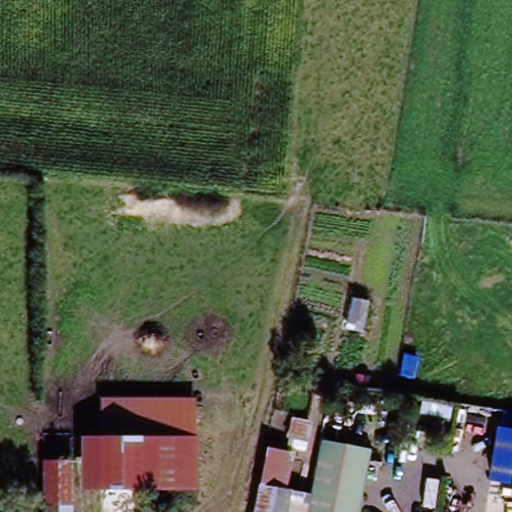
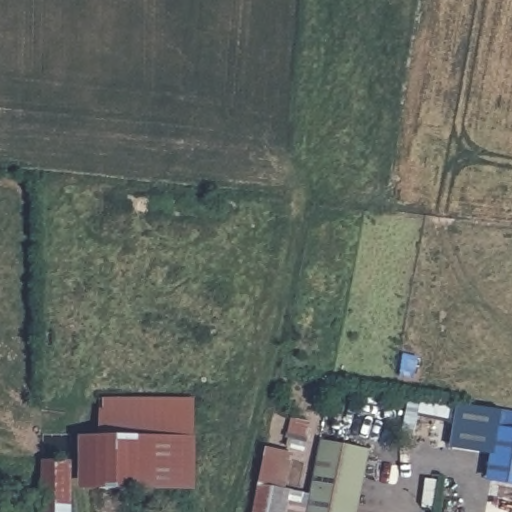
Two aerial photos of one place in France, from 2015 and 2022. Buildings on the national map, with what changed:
new [(512,413),(512,435),(496,432),(492,453),(450,448),(456,404),(512,413)]
unchanged [(195,491),(97,491),(97,439),(97,408),(195,406),(195,438),(195,491)]
unchanged [(488,480),(496,432),(512,435),(512,484),(488,480)]
unchanged [(317,445),(367,455),(356,512),(305,512),(310,489),(317,445)]
unchanged [(75,466),(74,512),(43,512),(44,468),(75,466)]
unchanged [(310,489),(305,512),(252,512),(258,479),(310,489)]

